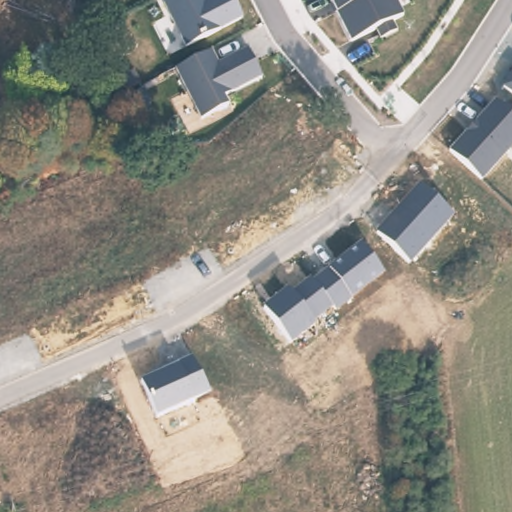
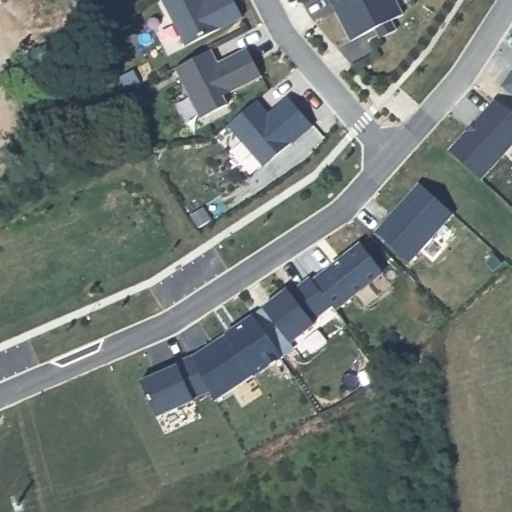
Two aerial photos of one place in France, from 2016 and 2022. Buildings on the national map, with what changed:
unchanged [(241,18),(182,45),(160,0),(232,0),(241,18)]
unchanged [(401,16),(390,24),(393,29),(378,38),(374,29),(350,40),(330,0),(394,0),(401,16)]
unchanged [(211,52),(218,64),(247,48),(262,79),(224,96),(227,104),(199,120),(176,69),(211,52)]
unchanged [(512,92),(502,86),(512,70),(512,92)]
unchanged [(512,112),(512,146),(482,179),(449,149),(492,98),(512,112)]
new [(260,106),(273,119),(293,101),(317,127),(271,170),(234,131),(260,106)]
unchanged [(417,184),(451,214),(409,262),(376,230),(417,184)]
unchanged [(309,275),(314,280),(358,242),(383,274),(335,313),(329,308),(311,320),(314,325),(292,344),(262,307),(309,275)]
new [(207,392),(194,362),(176,368),(174,363),(192,355),(225,332),(252,315),(281,359),(253,376),(215,402),(207,392)]
unchanged [(194,362),(207,392),(156,416),(141,380),(194,362)]

